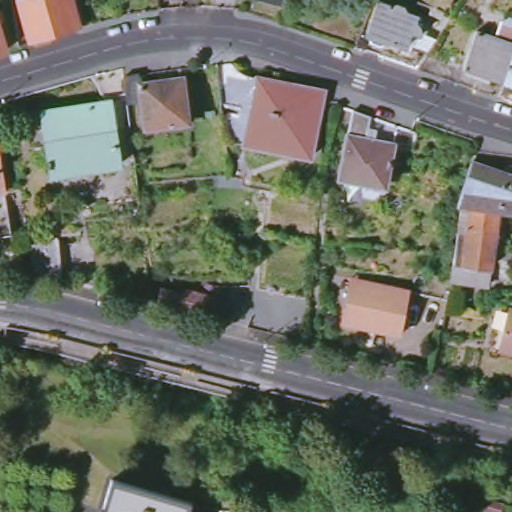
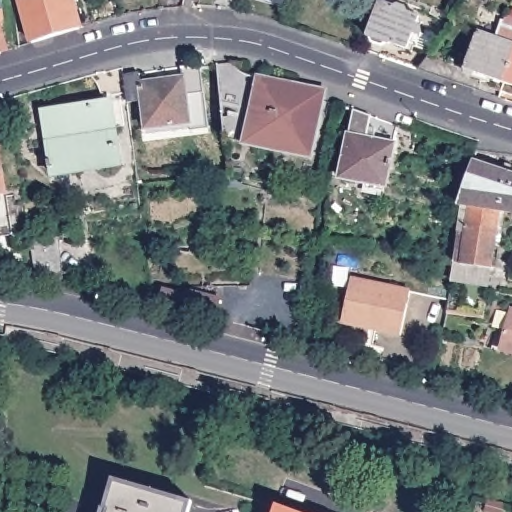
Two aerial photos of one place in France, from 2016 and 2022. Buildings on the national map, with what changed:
unchanged [(31,42),(20,1),(23,0),(71,0),(80,29),(31,42)]
unchanged [(279,0),(290,0),(289,2),(279,0)]
unchanged [(392,44),(390,47),(388,45),(382,47),(371,44),(371,39),(367,37),(381,2),(394,6),(399,4),(406,7),(407,12),(420,16),(418,24),(422,36),(414,34),(409,50),(392,44)]
unchanged [(11,47),(0,51),(0,11),(11,47)]
unchanged [(479,27),(497,33),(503,19),(512,21),(512,60),(506,79),(487,72),(481,87),(460,80),(479,27)]
unchanged [(512,60),(512,81),(506,79),(512,60)]
unchanged [(223,134),(217,65),(287,85),(285,95),(297,97),(298,89),(326,97),(311,160),(271,153),(273,143),(229,135),(223,134)]
unchanged [(125,80),(140,77),(142,87),(183,80),(192,126),(149,131),(144,104),(128,106),(125,80)]
unchanged [(70,112),(107,105),(110,132),(115,131),(120,167),(78,173),(70,112)]
unchanged [(78,173),(54,177),(44,115),(70,112),(78,173)]
unchanged [(341,181),(355,112),(372,117),(368,140),(396,146),(388,190),(341,181)]
unchanged [(462,202),(473,158),(512,170),(512,204),(502,202),(488,287),(452,281),(457,252),(466,204),(462,202)]
unchanged [(6,196),(0,197),(0,161),(6,196)]
unchanged [(30,244),(56,239),(61,270),(33,263),(30,244)]
unchanged [(398,332),(381,328),(340,320),(345,289),(349,277),(360,278),(388,284),(407,288),(398,332)]
unchanged [(156,304),(159,290),(185,297),(186,291),(216,293),(212,315),(156,304)]
unchanged [(509,311),(512,312),(512,350),(498,346),(509,311)]
unchanged [(102,507),(97,506),(105,475),(185,492),(180,512),(100,512),(102,507)]
new [(299,512),(274,512),(277,503),(299,512)]

